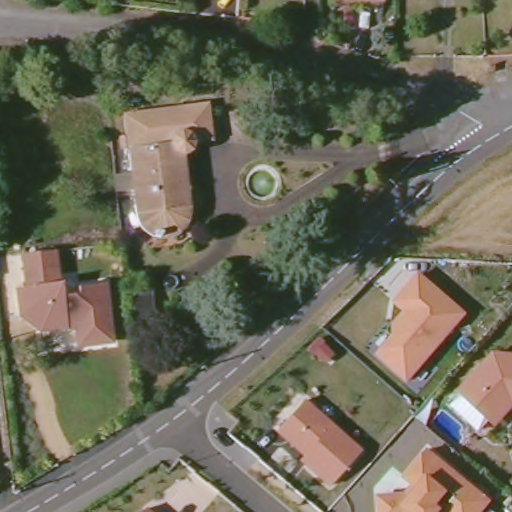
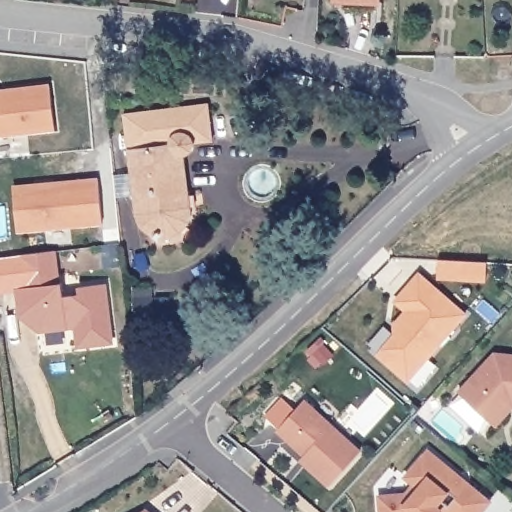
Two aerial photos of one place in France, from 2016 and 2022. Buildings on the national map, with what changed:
unchanged [(360,0),(378,0),(378,1),(360,0)]
new [(56,132),(0,139),(0,89),(50,84),(56,132)]
unchanged [(131,152),(129,137),(126,117),(167,112),(210,106),(215,141),(175,146),(181,195),(183,227),(179,234),(171,241),(157,241),(147,235),(141,226),(131,152)]
new [(103,225),(18,232),(13,186),(98,179),(103,225)]
unchanged [(34,254),(56,250),(58,285),(62,285),(64,297),(80,295),(78,287),(104,283),(115,341),(91,345),(87,321),(68,324),(69,329),(42,333),(22,320),(17,293),(26,292),(25,255),(34,254)]
unchanged [(470,316),(411,384),(377,357),(394,336),(395,323),(404,312),(396,303),(422,272),(470,316)]
unchanged [(460,392),(496,353),(512,355),(512,415),(499,428),(460,392)]
unchanged [(365,452),(332,491),(300,463),(305,457),(277,435),(306,400),(365,452)]
unchanged [(488,512),(379,512),(377,497),(412,493),(416,488),(405,480),(429,449),(496,502),(488,512)]

